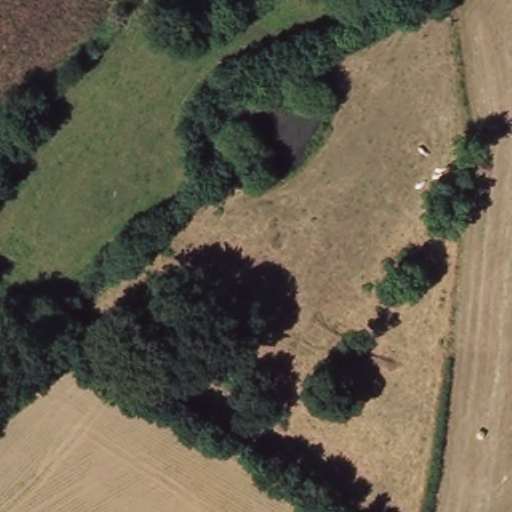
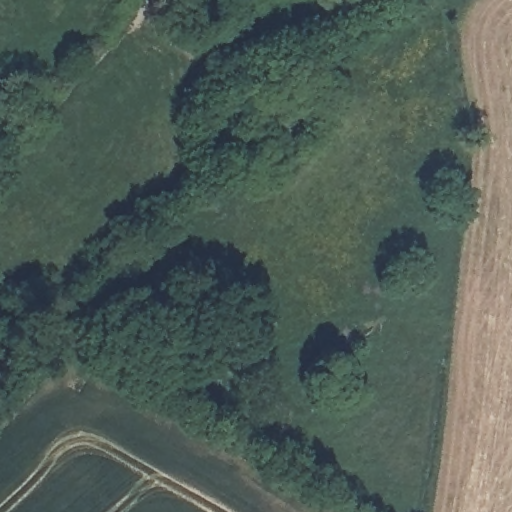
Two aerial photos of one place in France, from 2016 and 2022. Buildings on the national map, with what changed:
[]

